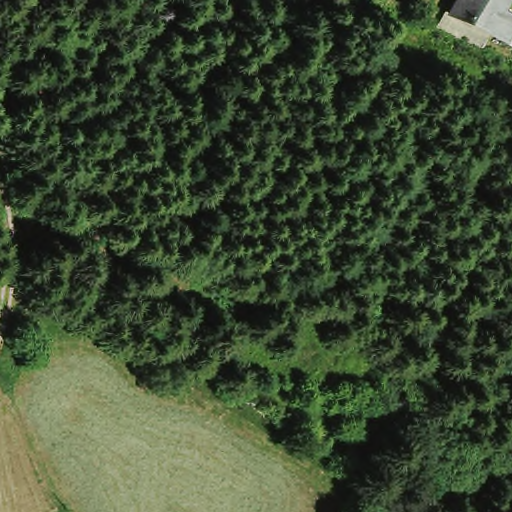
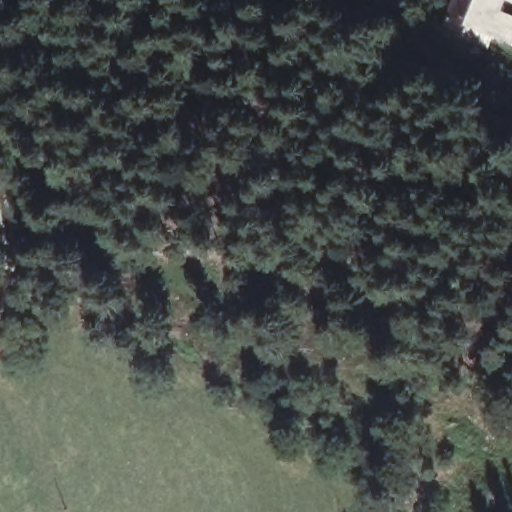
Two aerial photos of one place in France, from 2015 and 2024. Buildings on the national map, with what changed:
unchanged [(505,0),(498,12),(512,19),(512,39),(510,42),(451,10),(456,0),(505,0)]

